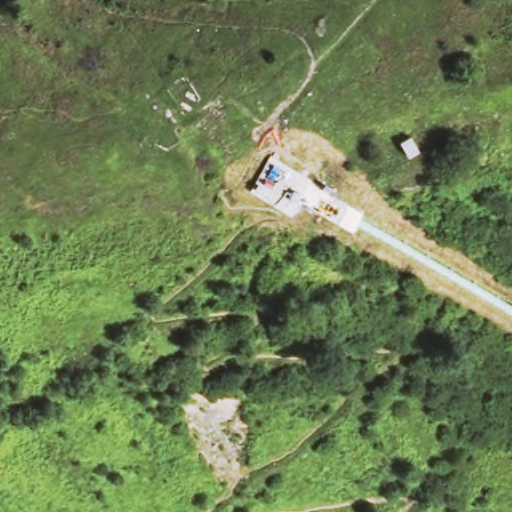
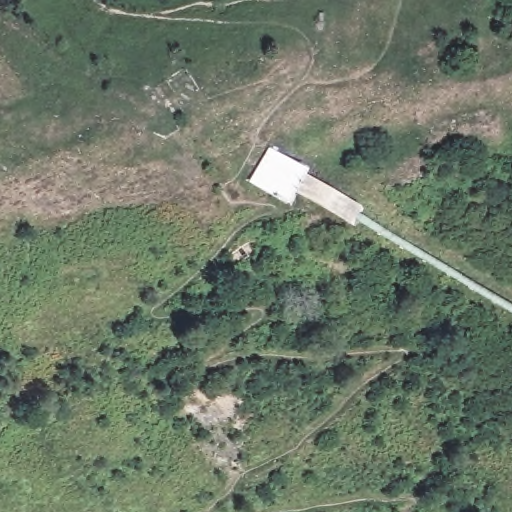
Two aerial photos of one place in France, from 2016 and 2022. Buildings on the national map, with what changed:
unchanged [(343,225),(300,197),(291,212),(249,190),(270,151),(315,175),(311,181),(353,201),(348,213),(343,225)]

